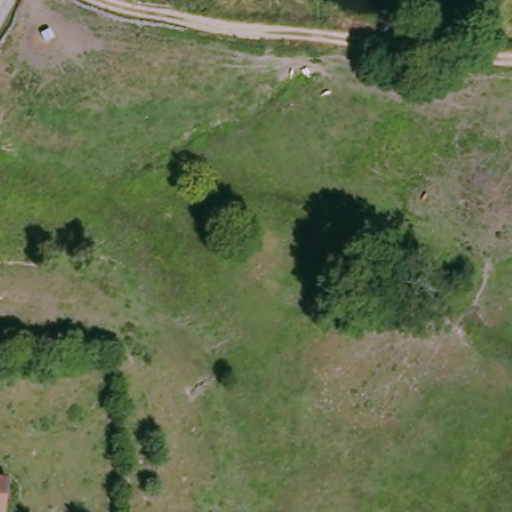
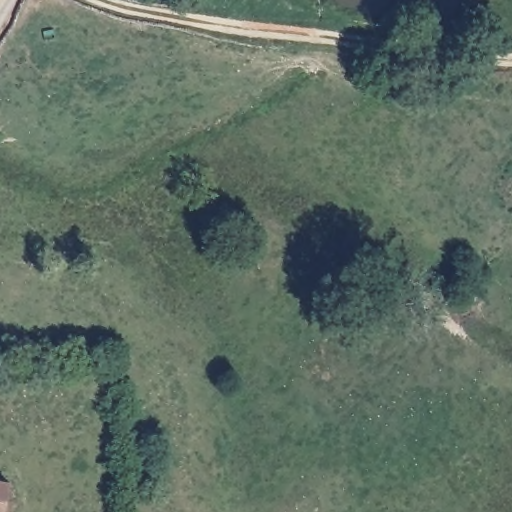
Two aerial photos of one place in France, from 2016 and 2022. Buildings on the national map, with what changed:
unchanged [(14,483),(15,496),(15,512),(0,512),(0,480),(14,483)]

